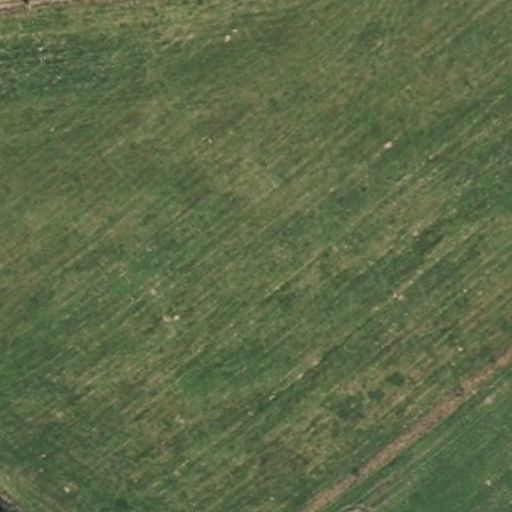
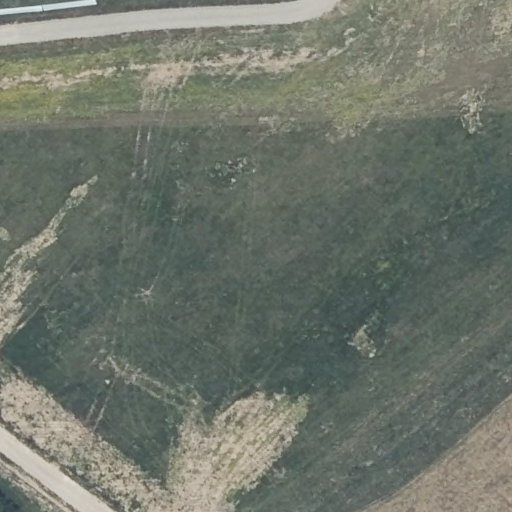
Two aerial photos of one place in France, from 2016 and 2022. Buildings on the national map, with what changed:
[]

